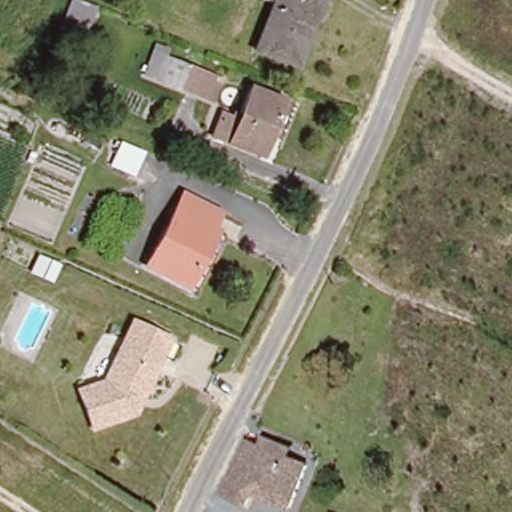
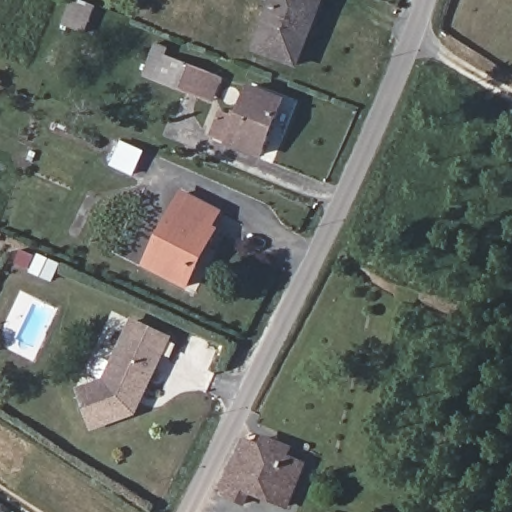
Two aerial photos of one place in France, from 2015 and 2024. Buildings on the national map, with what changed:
unchanged [(89,8),(82,24),(65,18),(70,0),(89,8)]
unchanged [(257,46),(275,4),(266,0),(321,0),(296,62),(257,46)]
unchanged [(215,104),(161,82),(150,78),(160,52),(171,56),(169,62),(223,84),(215,104)]
unchanged [(221,132),(230,110),(246,116),(257,87),(288,100),(268,150),(221,132)]
unchanged [(206,263),(198,282),(153,263),(181,194),(221,210),(200,260),(206,263)]
unchanged [(59,263),(52,277),(35,270),(41,255),(59,263)]
unchanged [(125,338),(132,340),(160,352),(134,412),(91,426),(82,401),(77,387),(99,382),(116,360),(125,338)]
unchanged [(244,504),(221,493),(247,442),(263,450),(267,441),(292,455),(287,462),(296,467),(304,471),(285,511),(280,508),(250,492),(244,504)]

